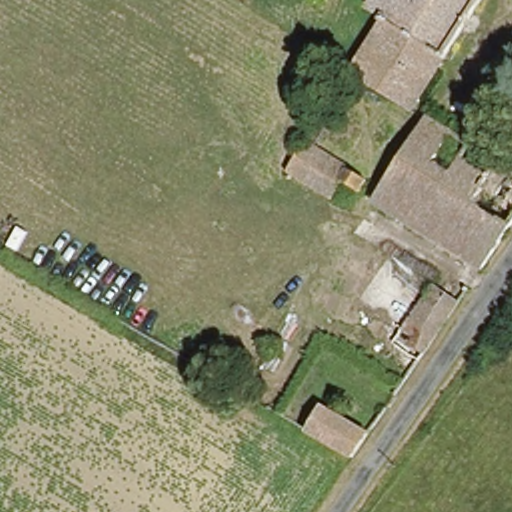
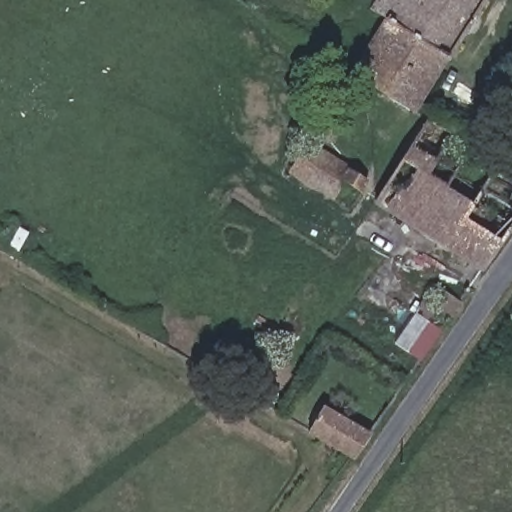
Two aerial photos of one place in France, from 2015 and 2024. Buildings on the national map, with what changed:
unchanged [(350,78),(383,23),(365,13),(373,0),(480,0),(410,114),(350,78)]
unchanged [(376,203),(429,115),(461,135),(443,162),(454,169),(466,154),(488,168),(496,158),(512,168),(512,225),(480,274),(376,203)]
unchanged [(322,118),(336,125),(319,150),(371,181),(361,196),(340,184),(333,197),(289,169),(322,118)]
unchanged [(413,315),(432,284),(460,302),(439,334),(413,315)]
unchanged [(393,345),(413,315),(439,334),(418,363),(393,345)]
unchanged [(344,454),(308,431),(324,404),(370,431),(352,459),(344,454)]

